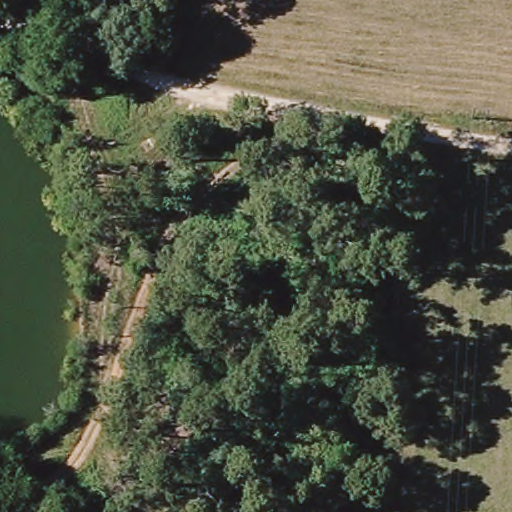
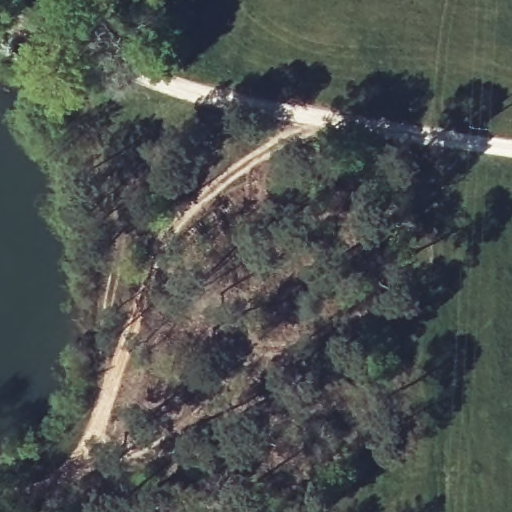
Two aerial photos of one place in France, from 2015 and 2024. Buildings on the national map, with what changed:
[]

